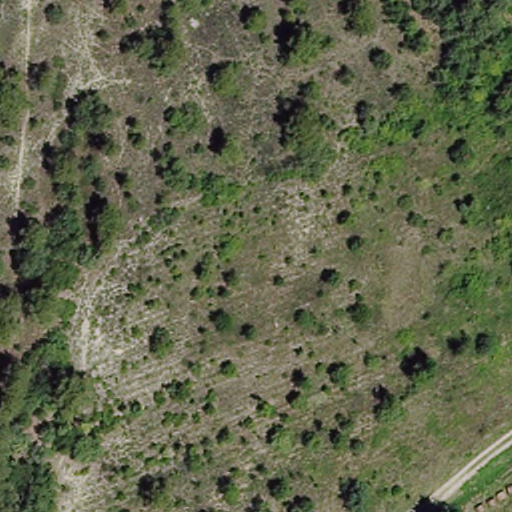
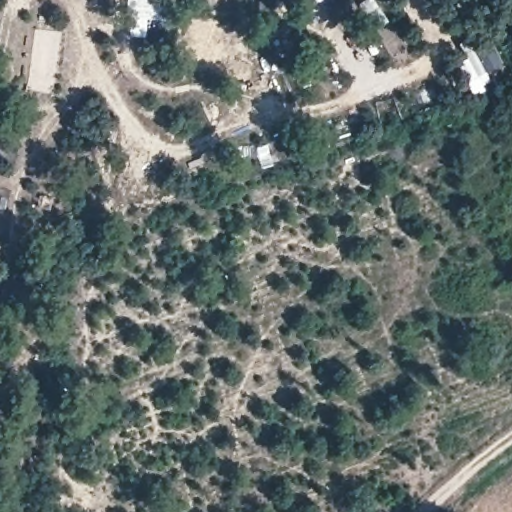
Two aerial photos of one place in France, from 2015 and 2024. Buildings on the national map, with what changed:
[]

